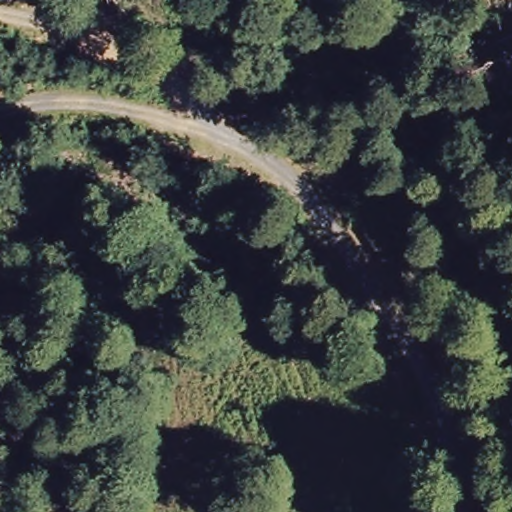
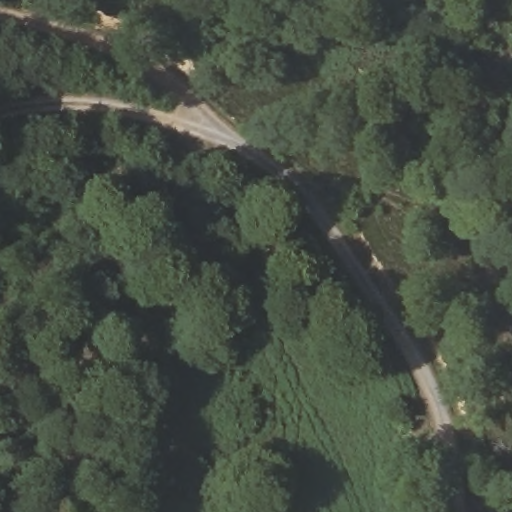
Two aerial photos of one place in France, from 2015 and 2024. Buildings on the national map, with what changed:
[]

